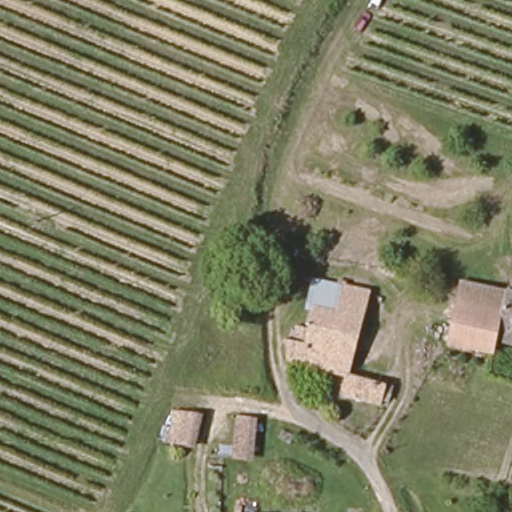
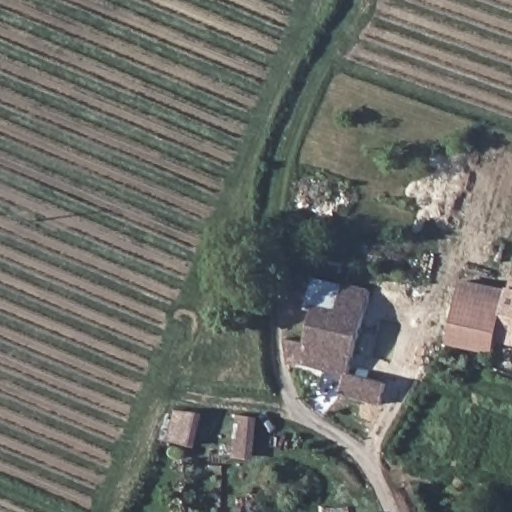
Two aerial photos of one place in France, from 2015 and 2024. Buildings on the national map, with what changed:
unchanged [(346,375),(383,385),(379,408),(339,396),(344,381),(288,365),(287,360),(285,344),(285,340),(292,341),(294,328),(308,331),(313,311),(307,310),(310,280),(339,283),(367,295),(346,375)]
unchanged [(498,349),(451,338),(463,280),(512,290),(512,292),(501,336),(498,349)]
unchanged [(501,336),(512,292),(512,338),(501,336)]
unchanged [(156,434),(170,411),(189,419),(174,443),(156,434)]
unchanged [(221,512),(221,495),(249,500),(254,501),(253,512),(221,512)]
unchanged [(296,504),(296,511),(308,512),(253,512),(254,501),(296,504)]

